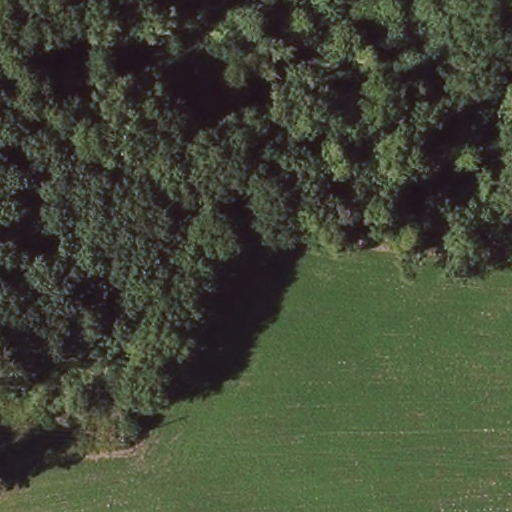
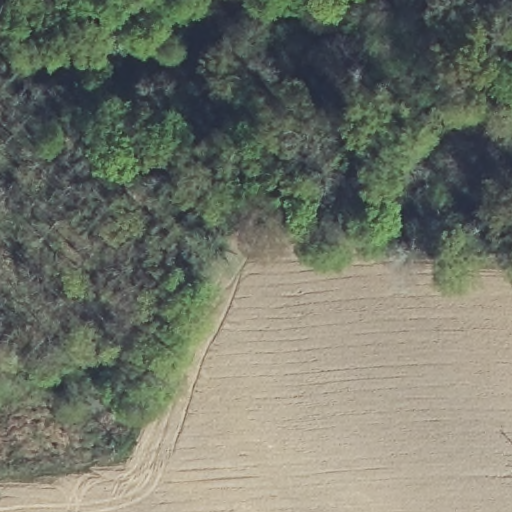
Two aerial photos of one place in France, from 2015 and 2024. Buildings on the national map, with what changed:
unchanged [(135,374),(112,397),(59,358),(69,332),(135,374)]

